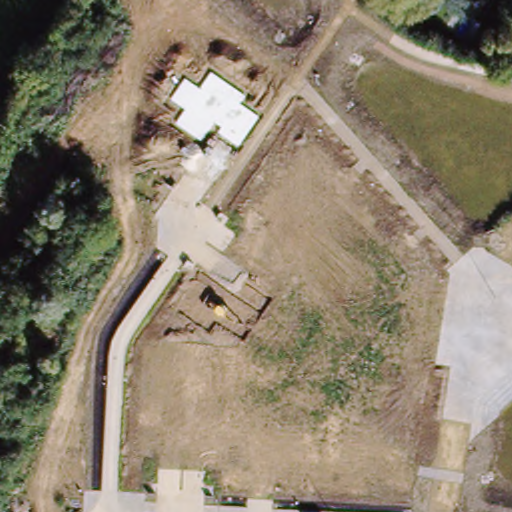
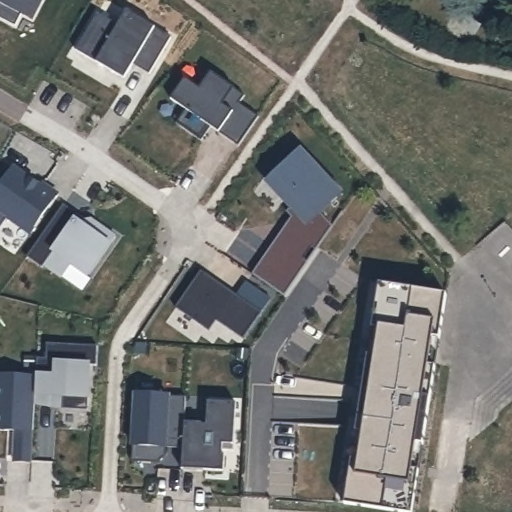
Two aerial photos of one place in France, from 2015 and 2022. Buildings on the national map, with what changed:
new [(77,51),(99,12),(120,25),(130,10),(175,37),(154,72),(137,62),(127,81),(105,68),(98,64),(77,51)]
new [(200,90),(211,71),(234,87),(245,96),(240,104),(256,116),(237,145),(222,128),(217,131),(207,124),(201,138),(175,117),(183,107),(170,98),(184,78),(200,90)]
new [(257,277),(252,274),(297,210),(268,180),(301,149),(343,192),(318,219),(332,228),(317,249),(308,263),(285,297),(257,277)]
new [(14,168),(30,180),(29,182),(40,189),(43,185),(57,195),(29,234),(8,219),(0,230),(0,188),(14,168)]
new [(63,205),(84,219),(81,224),(88,229),(93,222),(115,237),(87,276),(70,263),(61,277),(43,265),(42,267),(27,257),(63,205)]
new [(202,271),(237,295),(246,282),(271,299),(243,338),(217,320),(209,331),(175,307),(202,271)]
new [(345,505),(352,461),(358,462),(360,448),(344,446),(349,417),(358,418),(363,389),(368,356),(375,357),(379,330),(372,328),(380,284),(447,295),(423,446),(413,508),(413,512),(390,512),(345,505)]
new [(36,377),(37,358),(47,358),(47,343),(98,346),(97,365),(90,365),(88,410),(62,408),(63,396),(54,396),(54,405),(35,403),(36,377)]
new [(36,377),(35,403),(32,462),(14,461),(15,428),(8,428),(8,431),(0,430),(0,375),(36,377)]
new [(166,456),(158,462),(132,461),(137,393),(187,397),(185,422),(202,423),(202,424),(207,425),(208,402),(237,403),(234,451),(223,450),(223,455),(225,455),(225,472),(182,470),(183,448),(167,447),(166,456)]

